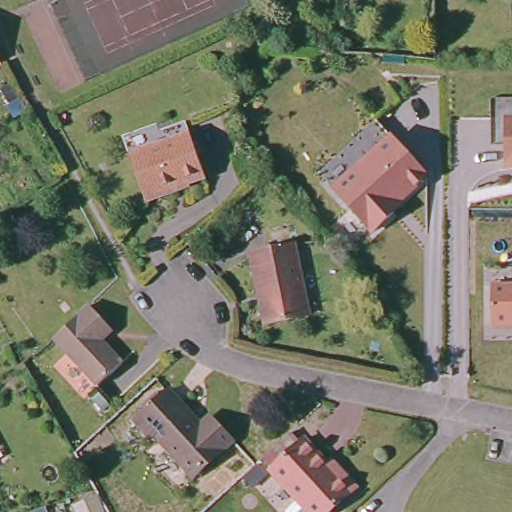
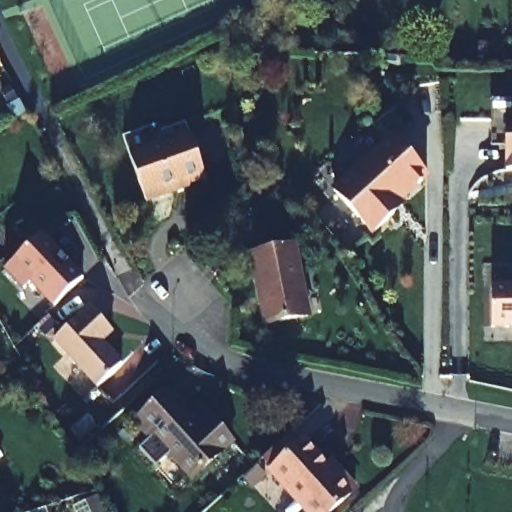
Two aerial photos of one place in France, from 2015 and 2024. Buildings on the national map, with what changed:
unchanged [(268,40),(257,41),(256,30),(267,29),(268,40)]
unchanged [(486,99),(512,98),(512,118),(501,119),(502,144),(486,144),(486,99)]
unchanged [(502,169),(502,144),(501,119),(512,118),(512,168),(502,169)]
unchanged [(126,144),(185,122),(206,177),(146,199),(126,144)]
unchanged [(386,140),(423,177),(389,211),(392,215),(371,236),(330,195),(386,140)]
new [(30,285),(23,292),(4,271),(44,233),(64,254),(56,262),(62,267),(70,261),(85,277),(52,307),(30,285)]
unchanged [(295,242),(309,311),(266,319),(252,251),(295,242)]
unchanged [(491,327),(490,286),(512,284),(512,327),(491,327)]
unchanged [(49,334),(85,301),(109,326),(97,337),(117,358),(91,382),(49,334)]
new [(138,404),(154,390),(162,398),(146,412),(138,404)]
unchanged [(220,454),(195,477),(156,436),(151,440),(135,422),(169,391),(180,403),(204,428),(224,450),(220,454)]
unchanged [(321,512),(296,512),(287,502),(299,491),(270,461),(301,432),(325,456),(330,451),(340,462),(356,478),(321,512)]

